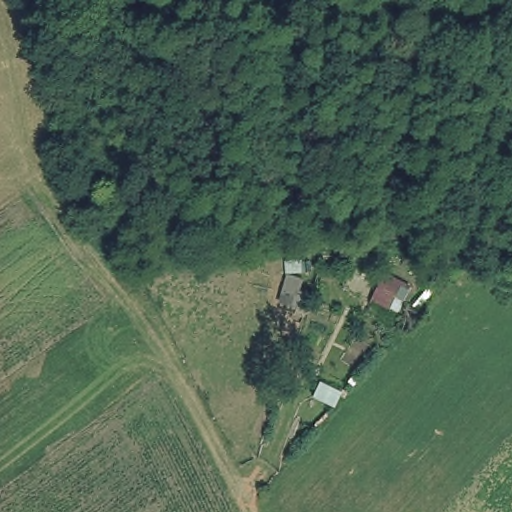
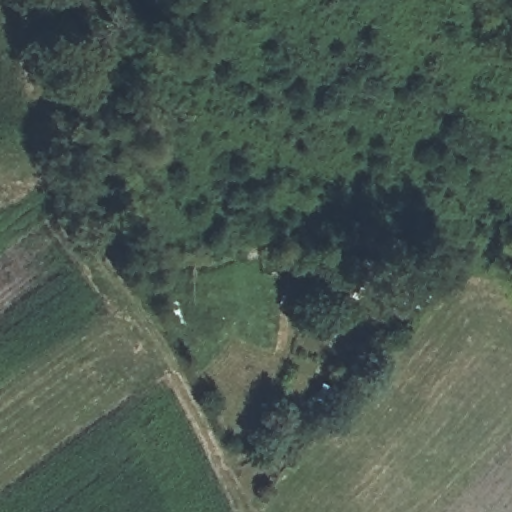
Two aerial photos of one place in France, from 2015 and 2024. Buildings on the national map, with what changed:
unchanged [(411,326),(373,301),(389,275),(427,300),(411,326)]

